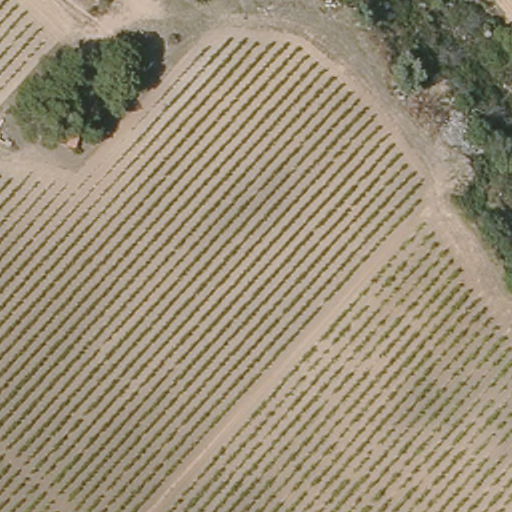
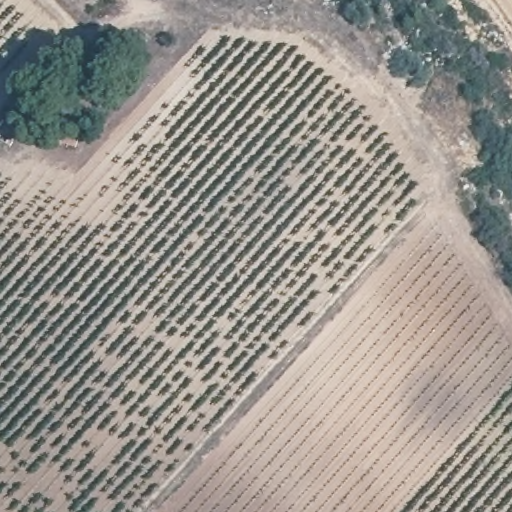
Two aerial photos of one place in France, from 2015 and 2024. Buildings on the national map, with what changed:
unchanged [(61,124),(81,127),(77,146),(57,142),(61,124)]

